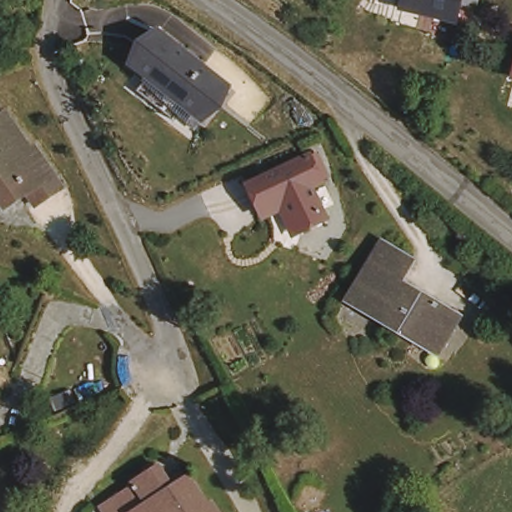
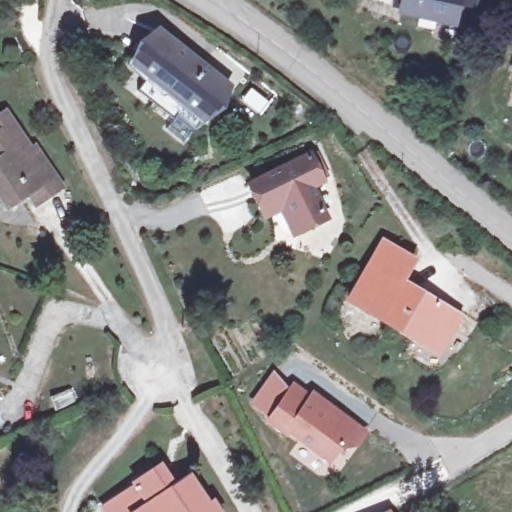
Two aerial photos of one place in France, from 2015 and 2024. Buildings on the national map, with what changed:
unchanged [(399,11),(401,0),(477,0),(476,8),(462,5),(458,25),(399,11)]
unchanged [(128,65),(158,27),(233,86),(204,124),(184,147),(167,133),(174,124),(186,110),(128,65)]
unchanged [(38,146),(65,187),(39,206),(29,192),(8,205),(0,194),(0,112),(4,110),(31,149),(38,146)]
unchanged [(309,157),(321,182),(308,189),(323,222),(297,234),(281,200),(262,210),(250,184),(309,157)]
unchanged [(414,340),(348,298),(387,236),(414,255),(402,276),(459,315),(441,344),(435,354),(414,340)]
new [(293,386),(309,398),(313,395),(366,432),(356,445),(339,447),(329,461),(288,431),(286,435),(268,421),(293,386)]
unchanged [(158,466),(174,488),(193,476),(218,512),(110,512),(105,503),(158,466)]

